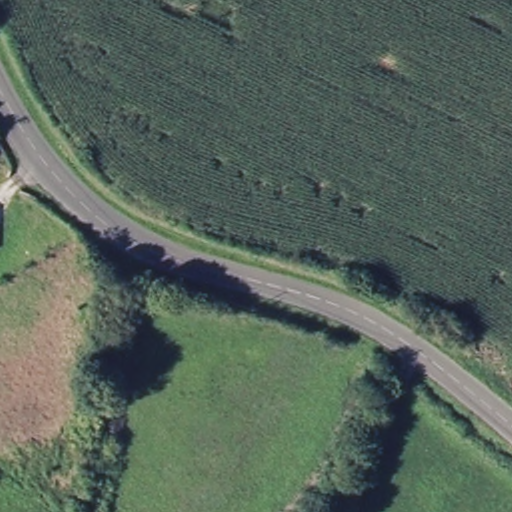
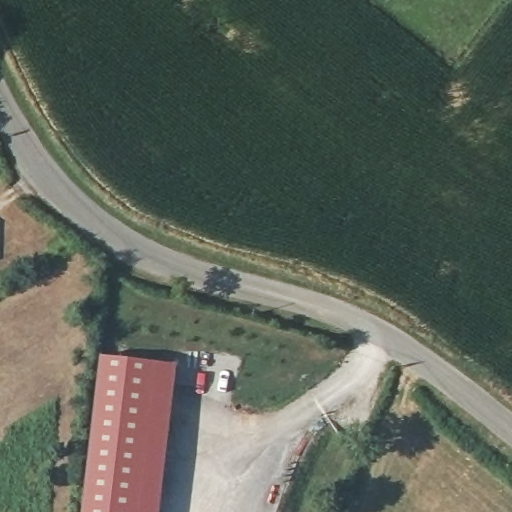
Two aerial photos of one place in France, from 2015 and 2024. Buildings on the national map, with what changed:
new [(177,365),(160,512),(80,512),(100,355),(177,365)]

